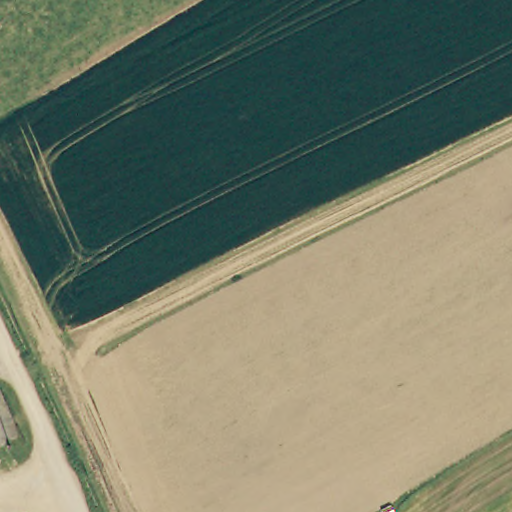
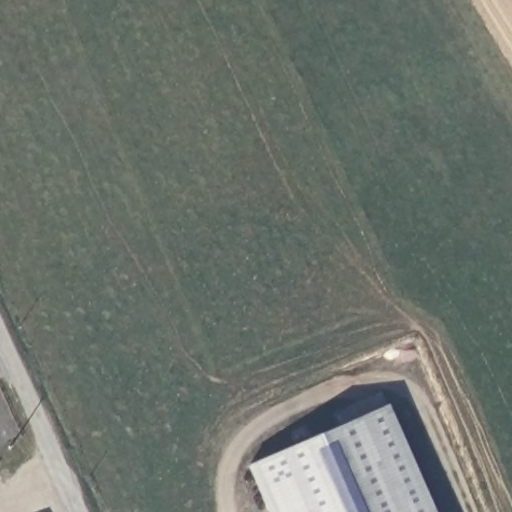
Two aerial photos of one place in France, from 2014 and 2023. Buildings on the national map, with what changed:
new [(247,466),(389,405),(436,512),(267,512),(247,466)]

